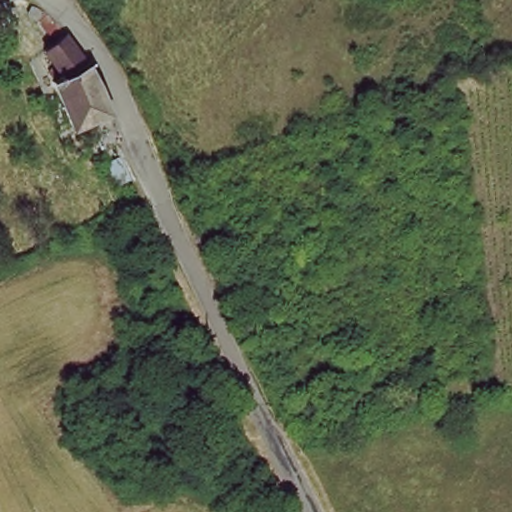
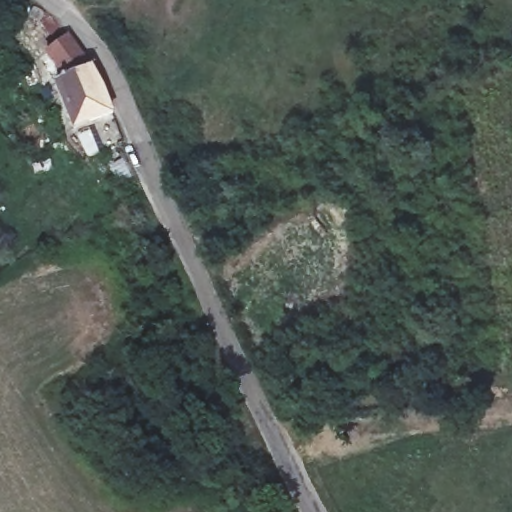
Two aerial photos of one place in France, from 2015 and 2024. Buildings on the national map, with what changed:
unchanged [(38,7),(38,8),(38,9),(38,10),(38,11),(37,12),(37,13),(37,14),(35,15),(35,16),(33,16),(31,16),(30,16),(28,16),(27,15),(26,15),(25,14),(25,13),(24,12),(23,11),(23,10),(23,9),(23,7),(23,6),(24,5),(25,4),(25,3),(26,2),(27,2),(28,2),(30,1),(32,1),(34,2),(35,3),(37,5),(38,7)]
unchanged [(63,77),(48,51),(70,34),(74,39),(83,53),(92,64),(97,73),(102,83),(107,93),(115,112),(75,127),(52,83),(63,77)]

